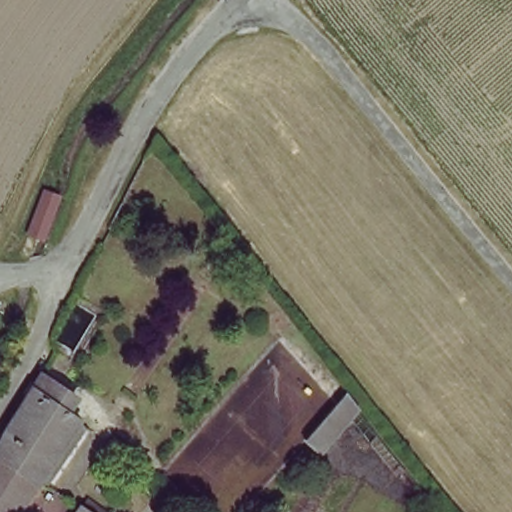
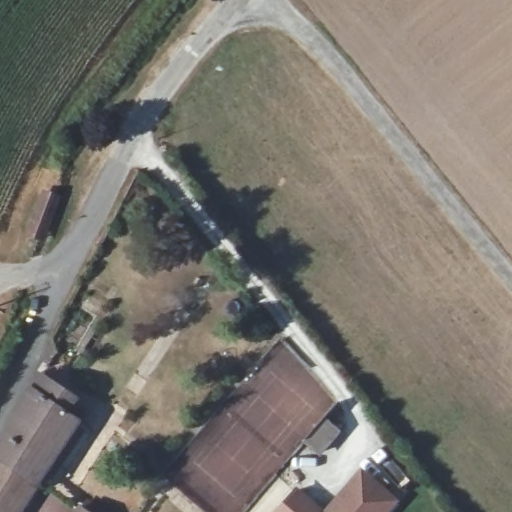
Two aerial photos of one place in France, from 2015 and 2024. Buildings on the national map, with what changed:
unchanged [(60,198),(40,234),(18,222),(23,214),(27,205),(30,194),(33,183),(60,198)]
unchanged [(40,371),(75,394),(68,406),(83,415),(18,512),(0,512),(0,441),(6,429),(40,371)]
unchanged [(351,399),(361,409),(323,453),(311,442),(351,399)]
new [(323,509),(326,505),(359,467),(393,496),(380,512),(272,512),(294,485),(323,509)]
unchanged [(101,512),(82,512),(88,503),(101,512)]

